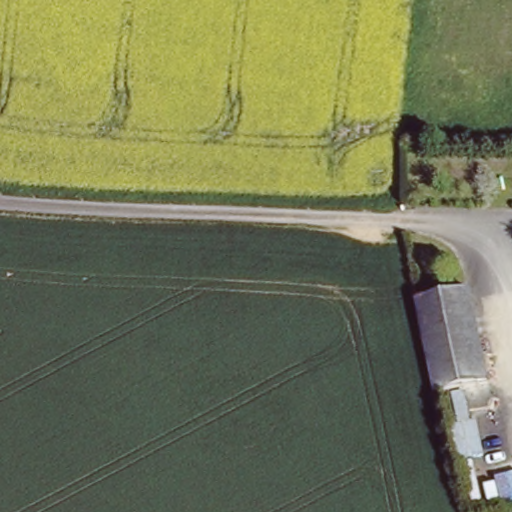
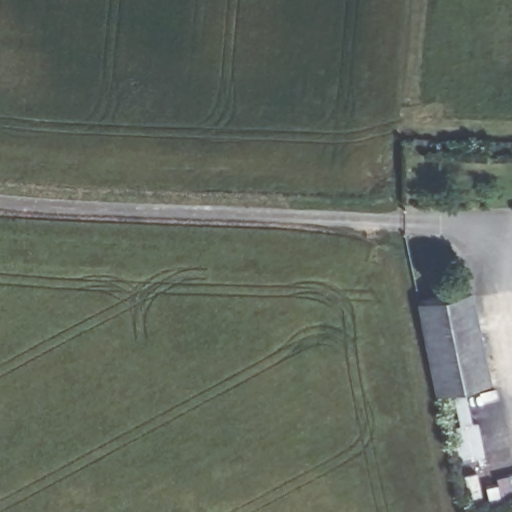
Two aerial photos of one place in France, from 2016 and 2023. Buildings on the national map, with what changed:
unchanged [(413,303),(462,289),(488,376),(439,391),(413,303)]

